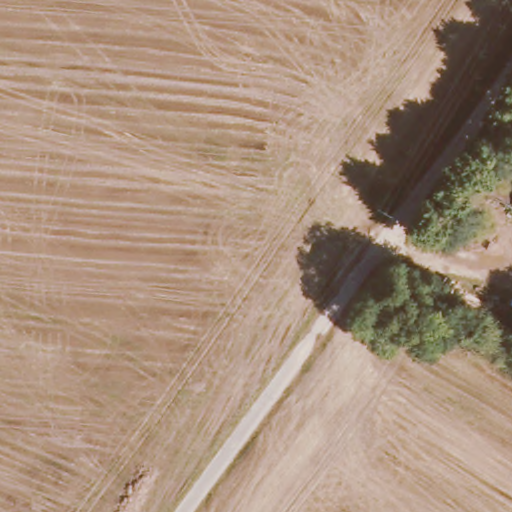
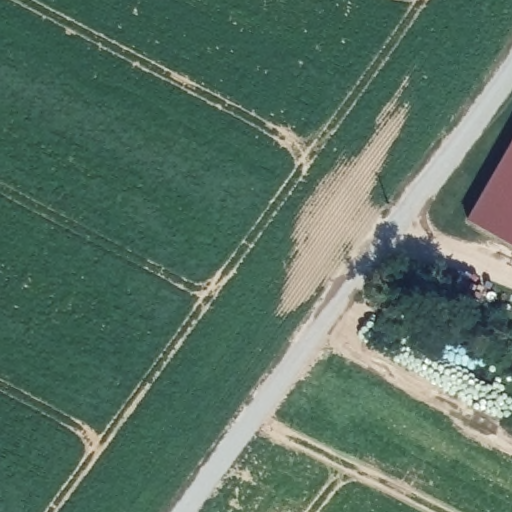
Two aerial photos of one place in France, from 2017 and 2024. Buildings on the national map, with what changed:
new [(512,142),(512,246),(466,221),(512,142)]
demolished [(512,144),(512,203),(490,192),(512,144)]

